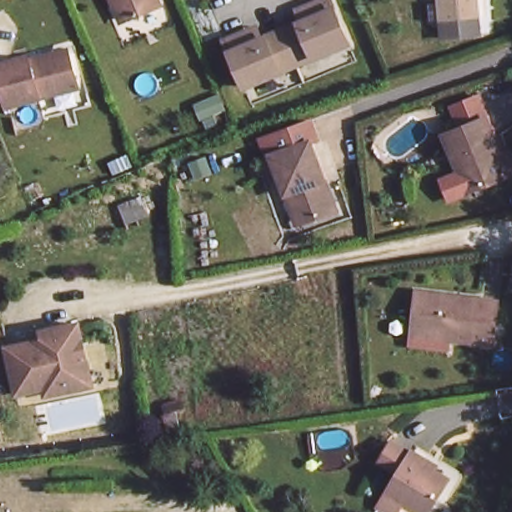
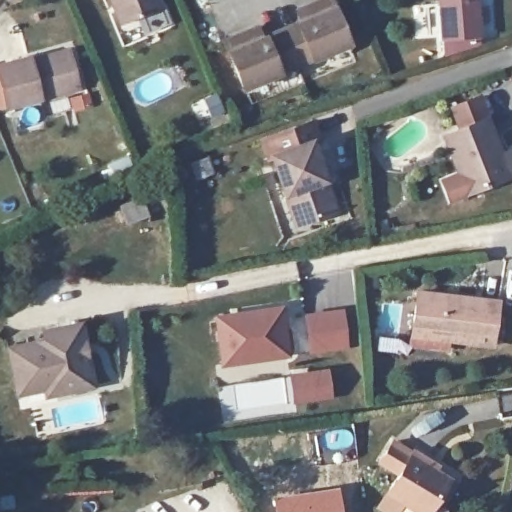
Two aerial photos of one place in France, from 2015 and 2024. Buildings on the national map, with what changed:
unchanged [(125,23),(116,0),(157,0),(161,9),(125,23)]
unchanged [(264,35),(298,21),(294,10),(318,0),(333,0),(352,47),(241,91),(220,40),(258,23),(264,35)]
unchanged [(479,32),(443,37),(442,20),(431,21),(429,1),(434,0),(477,0),(478,15),(479,32)]
unchanged [(33,53),(35,60),(73,49),(83,82),(12,104),(0,63),(33,53)]
unchanged [(482,111),(507,169),(467,187),(443,128),(482,111)]
unchanged [(300,134),(330,208),(296,221),(285,194),(279,197),(261,149),(300,134)]
unchanged [(406,322),(409,288),(490,296),(486,340),(441,336),(404,332),(406,322)]
new [(219,365),(213,314),(281,304),(289,357),(219,365)]
new [(341,308),(347,348),(309,353),(304,314),(341,308)]
unchanged [(9,342),(46,335),(44,326),(81,320),(92,383),(55,390),(45,391),(44,384),(17,389),(15,379),(9,342)]
new [(292,402),(289,374),(327,369),(331,397),(292,402)]
demolished [(158,402),(188,399),(193,434),(164,434),(158,402)]
unchanged [(379,487),(393,468),(374,455),(389,435),(407,448),(409,446),(420,454),(418,458),(443,475),(418,512),(414,512),(379,487)]
new [(337,487),(341,512),(273,512),(271,496),(337,487)]

